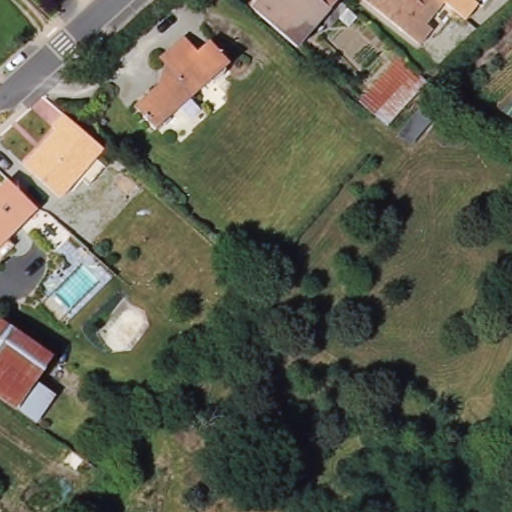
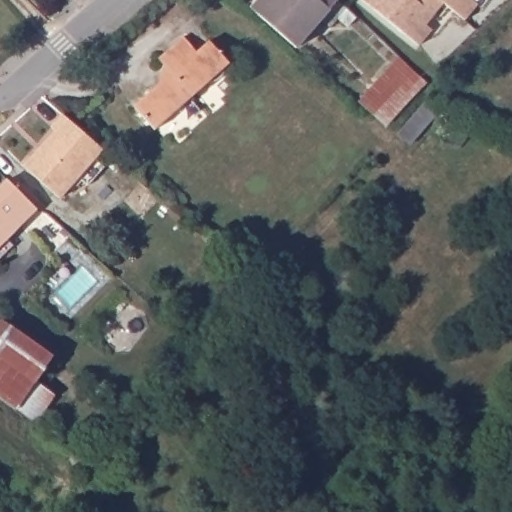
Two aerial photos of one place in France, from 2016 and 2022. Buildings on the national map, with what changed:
unchanged [(350,25),(347,27),(339,19),(330,27),(321,19),(296,47),(293,45),(258,15),(251,8),(258,0),(340,0),(345,5),(351,11),(357,17),(350,25)]
unchanged [(438,2),(420,24),(426,29),(413,45),(359,0),(435,0),(438,2)]
unchanged [(472,4),(460,20),(438,2),(435,0),(468,0),(472,4)]
unchanged [(159,58),(185,36),(197,52),(210,41),(230,64),(155,130),(135,106),(158,86),(165,79),(165,75),(165,72),(166,68),(165,66),(159,58)]
unchanged [(418,88),(385,125),(359,102),(392,64),(399,57),(424,82),(418,88)]
unchanged [(89,181),(79,172),(60,193),(24,161),(55,125),(52,122),(62,109),(104,145),(95,154),(105,162),(89,181)]
unchanged [(0,259),(0,187),(8,179),(38,209),(7,239),(15,246),(0,259)]
unchanged [(34,423),(15,410),(0,399),(0,323),(1,321),(53,356),(44,371),(37,379),(37,381),(54,394),(34,423)]
unchanged [(62,461),(70,450),(82,458),(75,469),(62,461)]

